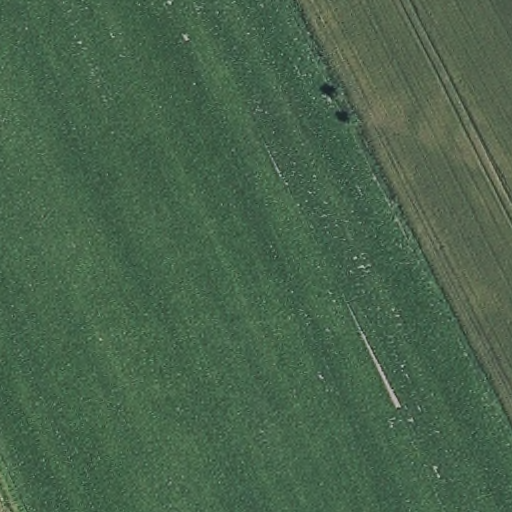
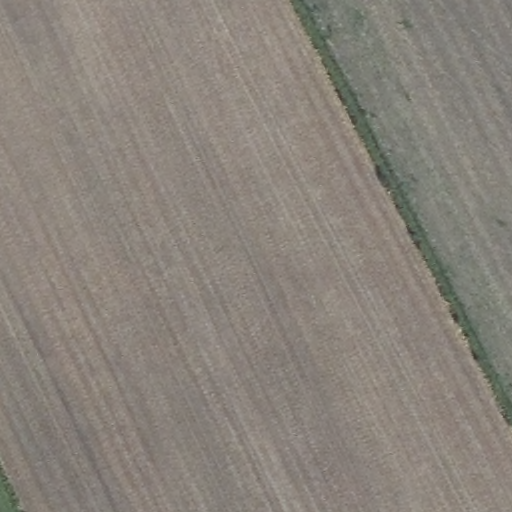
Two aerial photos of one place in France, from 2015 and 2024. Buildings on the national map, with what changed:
[]

